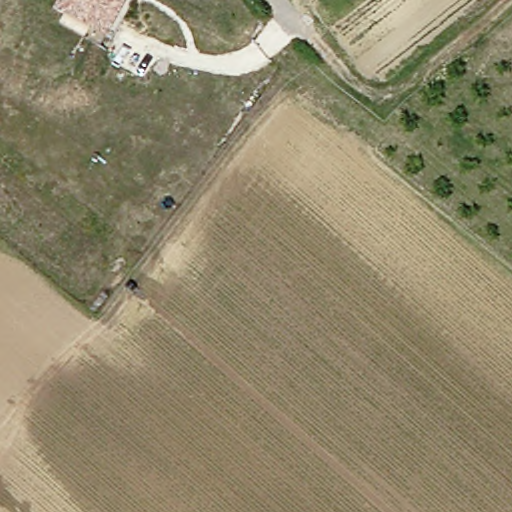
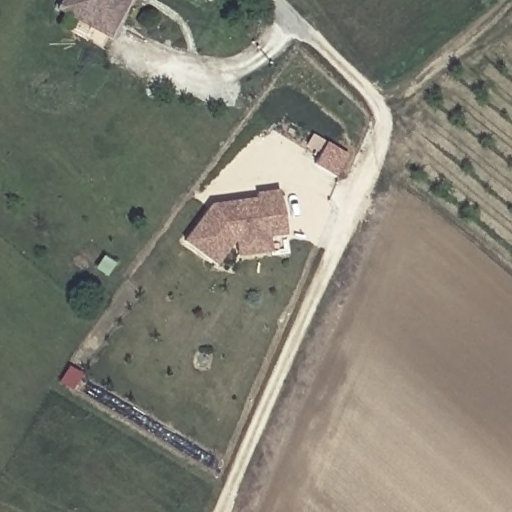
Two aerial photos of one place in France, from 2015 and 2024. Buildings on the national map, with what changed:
unchanged [(129,0),(111,38),(55,10),(60,0),(129,0)]
new [(210,204),(257,197),(257,192),(278,190),(285,235),(272,235),(272,253),(236,256),(232,243),(213,263),(183,241),(210,204)]

